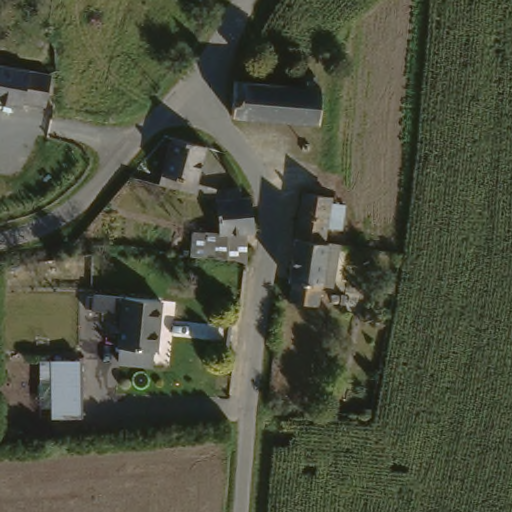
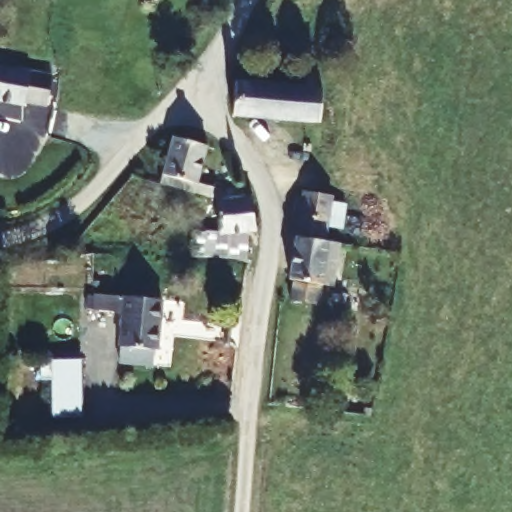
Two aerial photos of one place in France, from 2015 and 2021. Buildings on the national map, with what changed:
unchanged [(40,108),(18,104),(17,108),(0,105),(0,69),(46,76),(40,108)]
unchanged [(296,95),(297,83),(315,85),(315,98),(321,98),(318,131),(231,125),(234,91),(296,95)]
unchanged [(159,185),(171,139),(205,149),(196,185),(215,191),(239,190),(239,199),(216,201),(159,185)]
unchanged [(301,196),(331,201),(325,245),(293,239),(301,196)]
unchanged [(250,198),(254,234),(244,235),(243,265),(235,260),(189,259),(191,234),(219,236),(216,201),(239,199),(250,198)]
unchanged [(288,303),(292,283),(287,282),(293,239),(325,245),(338,248),(332,288),(321,287),(318,308),(288,303)]
unchanged [(155,352),(153,351),(152,367),(119,364),(120,349),(119,349),(122,316),(92,313),(92,312),(85,311),(86,300),(94,300),(94,297),(124,300),(160,302),(155,352)]
unchanged [(80,420),(53,421),(52,382),(40,382),(40,362),(51,362),(78,361),(79,371),(80,420)]

